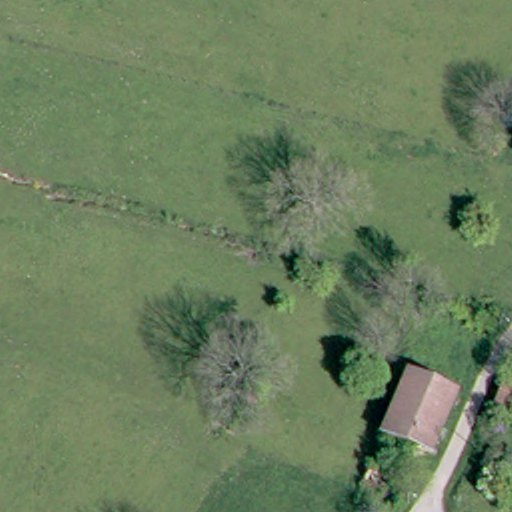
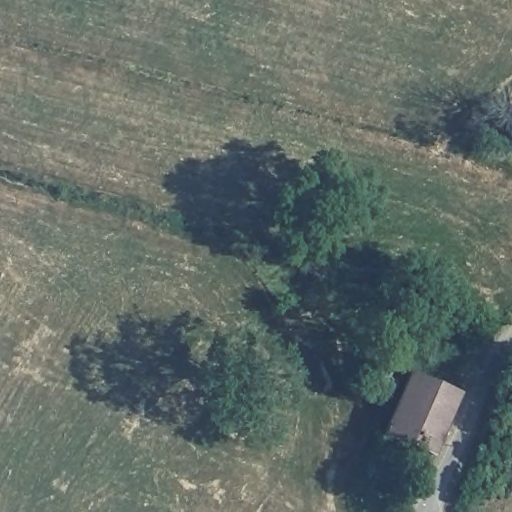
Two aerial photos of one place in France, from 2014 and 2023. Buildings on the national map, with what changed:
unchanged [(506,377),(512,380),(512,413),(496,406),(506,377)]
unchanged [(390,429),(414,378),(449,394),(426,446),(390,429)]

